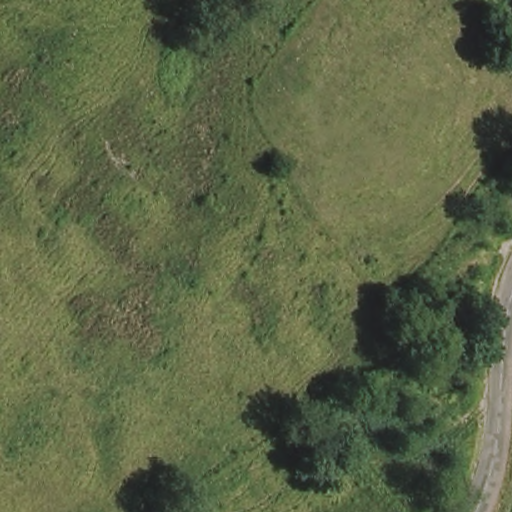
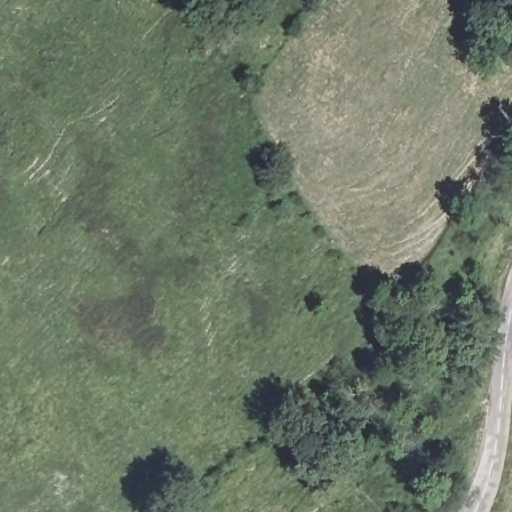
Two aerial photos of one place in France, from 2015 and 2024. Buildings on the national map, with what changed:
[]

